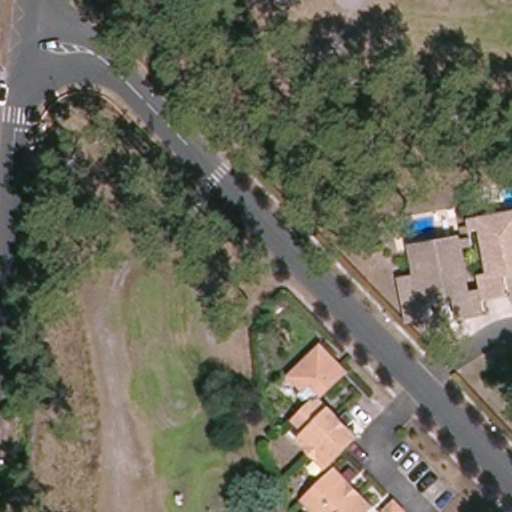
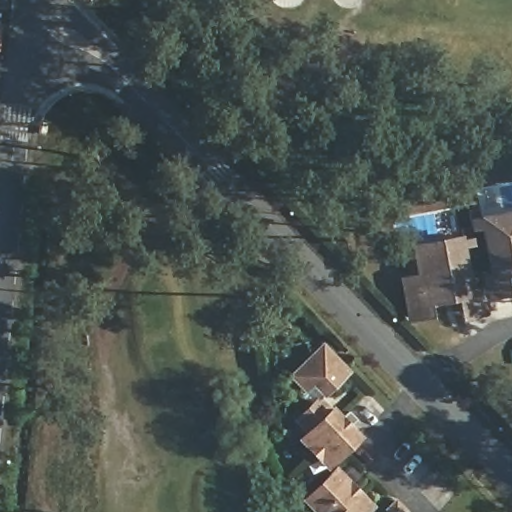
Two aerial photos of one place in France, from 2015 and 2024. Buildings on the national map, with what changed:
unchanged [(415,279),(412,247),(471,237),(470,219),(512,211),(512,289),(488,293),(490,312),(411,325),(399,282),(415,279)]
unchanged [(337,359),(332,363),(344,375),(325,394),(313,383),(306,390),(292,375),(323,345),(337,359)]
unchanged [(350,426),(360,436),(329,466),(302,439),(307,433),(296,421),(316,401),(328,413),(333,408),(342,418),(350,411),(357,419),(350,426)]
unchanged [(327,505),(320,512),(305,496),(336,467),(351,483),(347,487),(357,499),(343,512),(333,512),(327,505)]
unchanged [(362,495),(373,506),(367,512),(343,512),(357,499),(362,495)]
unchanged [(407,511),(405,512),(389,512),(387,510),(397,501),(407,511)]

